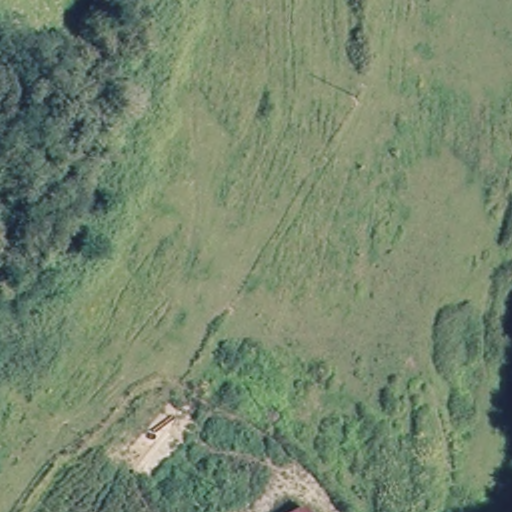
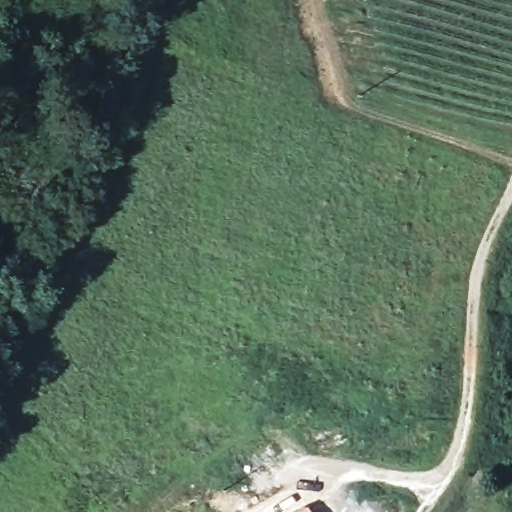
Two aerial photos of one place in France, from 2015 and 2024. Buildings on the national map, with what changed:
unchanged [(301,504),(304,512),(287,512),(301,504)]

